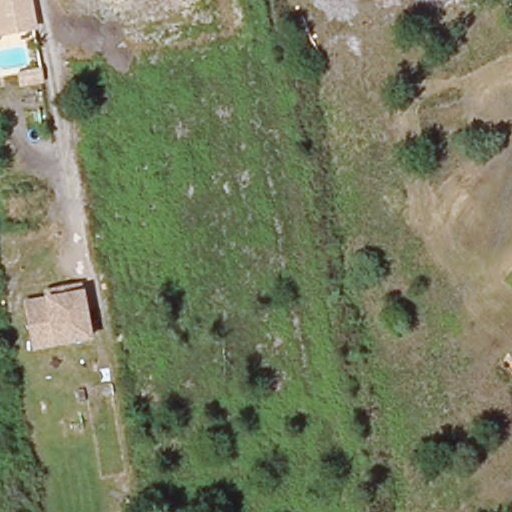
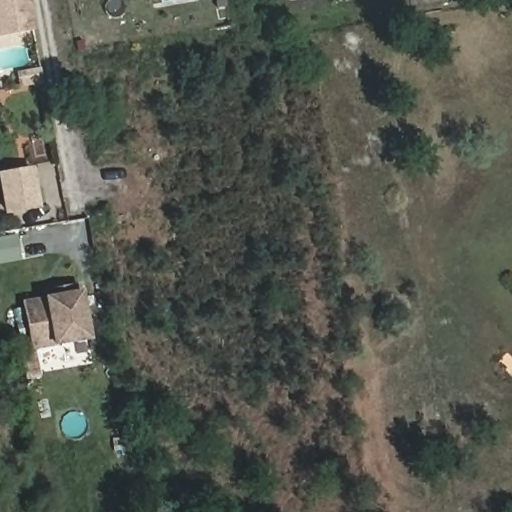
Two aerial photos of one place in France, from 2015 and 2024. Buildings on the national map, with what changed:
unchanged [(0,32),(0,0),(29,0),(33,28),(0,32)]
new [(4,215),(0,192),(0,172),(32,166),(40,209),(4,215)]
unchanged [(40,294),(39,286),(77,281),(87,336),(85,336),(86,339),(49,346),(49,344),(27,347),(19,297),(40,294)]

